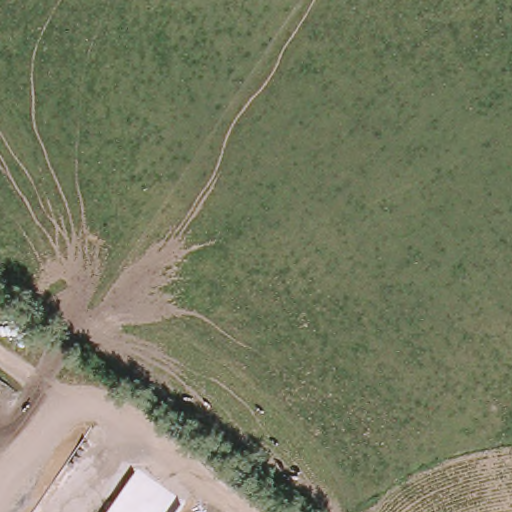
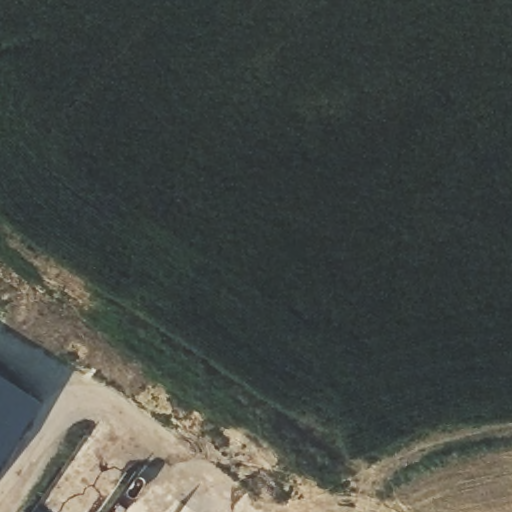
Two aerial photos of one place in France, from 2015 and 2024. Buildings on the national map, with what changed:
new [(0,458),(0,376),(40,398),(0,458)]

